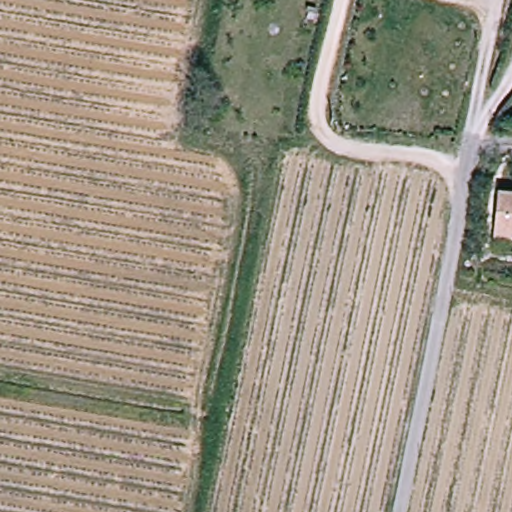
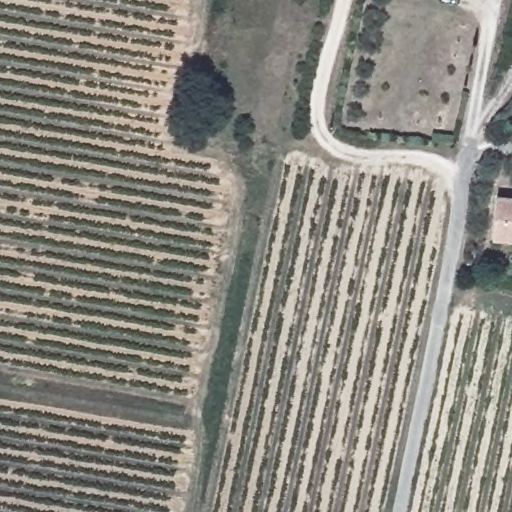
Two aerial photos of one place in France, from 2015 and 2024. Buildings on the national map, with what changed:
unchanged [(503,198),(512,199),(512,244),(495,242),(503,198)]

